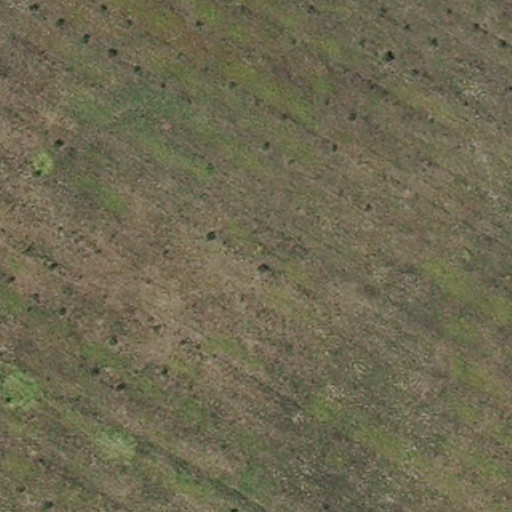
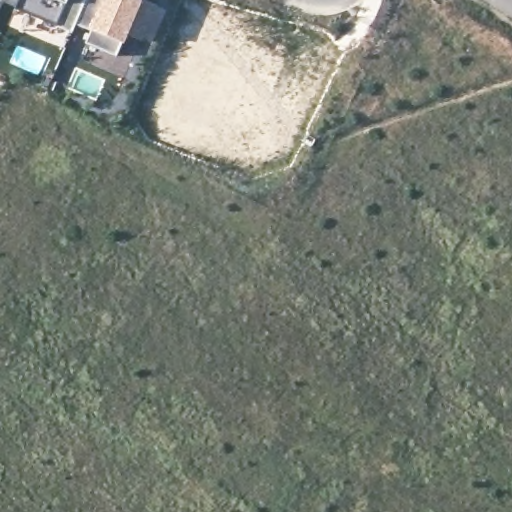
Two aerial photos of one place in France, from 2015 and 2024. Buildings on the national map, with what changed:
new [(56,23),(16,7),(2,0),(66,0),(56,23)]
new [(75,24),(72,32),(56,23),(66,0),(86,0),(75,24)]
new [(85,42),(90,31),(75,24),(86,0),(146,0),(166,9),(150,43),(128,34),(122,44),(116,56),(85,42)]

